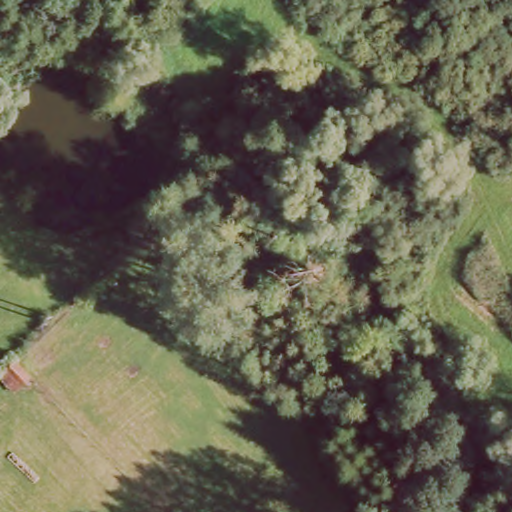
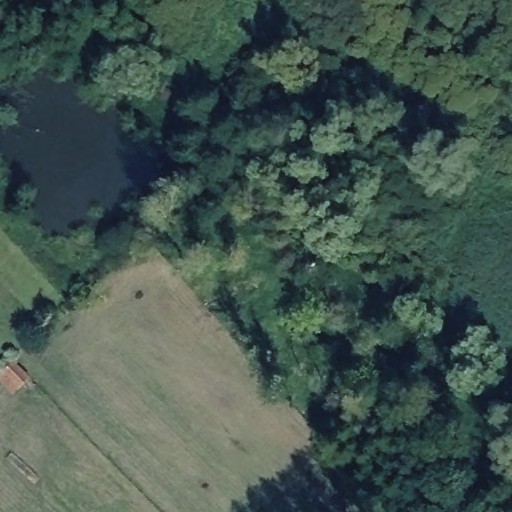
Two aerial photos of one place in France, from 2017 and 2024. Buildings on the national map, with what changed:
unchanged [(28,377),(20,385),(19,386),(3,371),(13,361),(28,377)]

